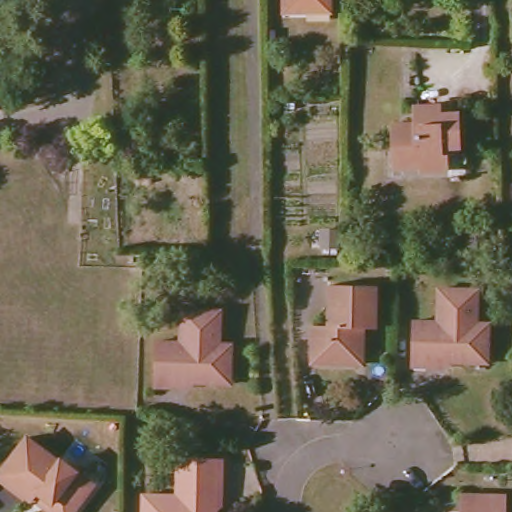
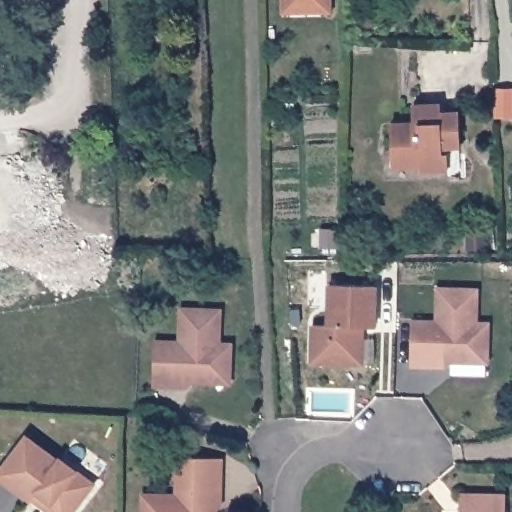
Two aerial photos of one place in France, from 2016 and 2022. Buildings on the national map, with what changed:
unchanged [(329,14),(289,15),(289,0),(329,0),(329,14)]
unchanged [(429,115),(455,113),(458,145),(442,146),(443,153),(447,153),(449,168),(419,171),(419,167),(391,169),(388,127),(411,126),(409,111),(428,109),(429,115)]
unchanged [(381,331),(358,331),(358,365),(320,365),(320,323),(335,322),(335,283),(381,283),(381,331)]
unchanged [(472,284),(473,317),(485,318),(484,354),(467,354),(467,358),(448,358),(447,353),(441,353),(440,360),(436,361),(408,361),(409,316),(434,316),(434,283),(472,284)]
unchanged [(221,307),(220,341),(233,342),(232,367),(220,376),(214,376),(213,381),(195,381),(194,375),(187,375),(186,382),(183,385),(154,384),(156,339),(179,339),(180,306),(221,307)]
unchanged [(59,458),(91,482),(70,512),(52,512),(43,505),(44,502),(37,497),(33,501),(0,478),(0,471),(25,437),(57,461),(59,458)]
unchanged [(217,497),(213,502),(206,502),(205,510),(210,510),(210,512),(137,512),(138,491),(171,492),(171,469),(188,470),(189,457),(218,458),(217,497)]
unchanged [(505,512),(459,512),(460,489),(505,490),(505,512)]

